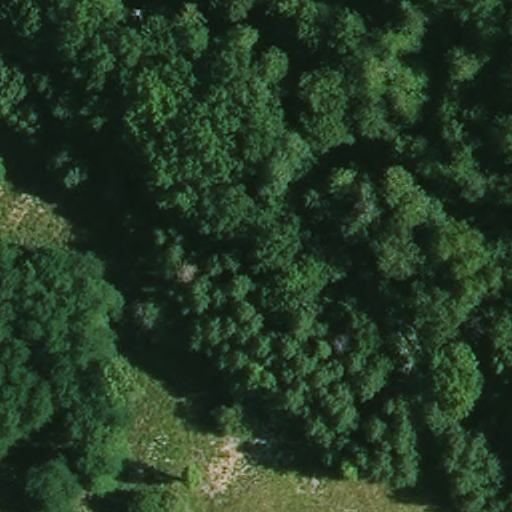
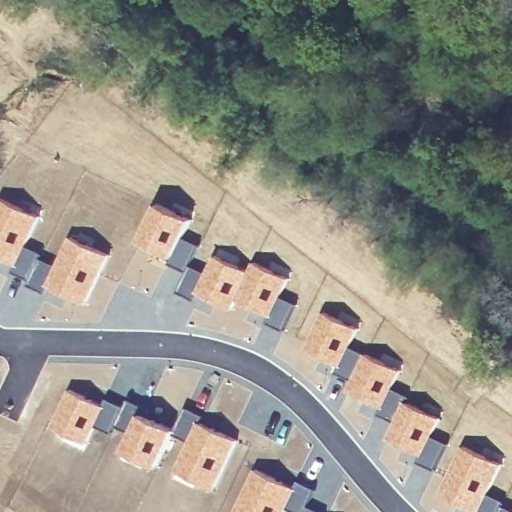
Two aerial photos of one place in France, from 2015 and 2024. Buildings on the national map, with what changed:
new [(110,253),(86,303),(46,285),(14,270),(16,266),(0,258),(0,195),(40,215),(27,245),(44,252),(42,256),(56,262),(70,235),(110,253)]
new [(156,201),(193,217),(185,236),(200,244),(188,268),(137,241),(156,201)]
new [(190,265),(204,270),(213,252),(247,268),(251,260),(289,277),(281,295),(296,303),(285,328),(270,320),(271,317),(236,301),(232,310),(194,292),(192,295),(179,289),(190,265)]
new [(321,310),(357,327),(351,345),(340,367),(303,348),(321,310)]
new [(351,345),(401,370),(393,387),(381,410),(345,391),(352,375),(340,367),(351,345)]
new [(381,410),(393,387),(441,417),(433,435),(448,443),(433,470),(417,461),(420,457),(384,438),(392,421),(380,413),(381,410)]
new [(67,388),(105,405),(107,398),(124,405),(116,425),(112,432),(97,425),(87,445),(50,428),(67,388)]
new [(124,405),(127,399),(141,406),(139,412),(176,428),(174,433),(158,469),(121,454),(130,431),(116,425),(124,405)]
new [(186,440),(174,433),(176,428),(185,407),(201,415),(199,420),(237,440),(212,492),(171,471),(186,440)]
new [(462,444),(502,464),(489,492),(478,512),(470,512),(437,494),(462,444)]
new [(254,467),(296,486),(300,481),(315,490),(308,505),(304,512),(296,512),(288,508),(286,512),(233,512),(254,467)]
new [(489,492),(512,507),(512,512),(478,512),(489,492)]
new [(308,505),(319,512),(304,512),(308,505)]

